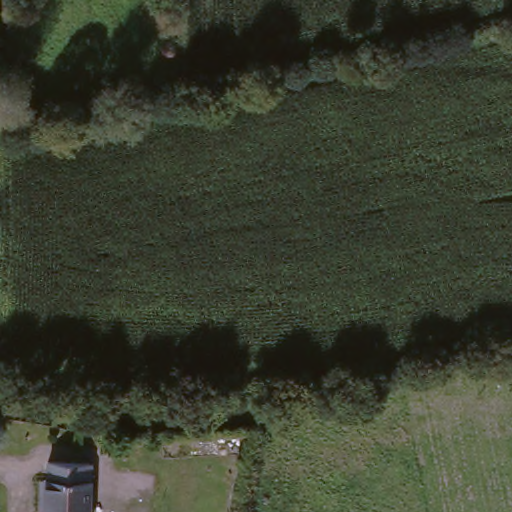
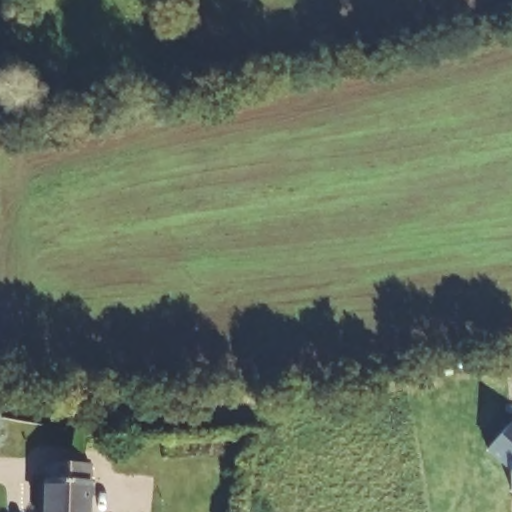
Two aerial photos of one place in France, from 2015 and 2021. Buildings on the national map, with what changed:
new [(511,476),(486,453),(512,423),(512,493),(511,476)]
unchanged [(44,479),(45,462),(90,465),(88,512),(41,512),(42,479),(44,479)]

